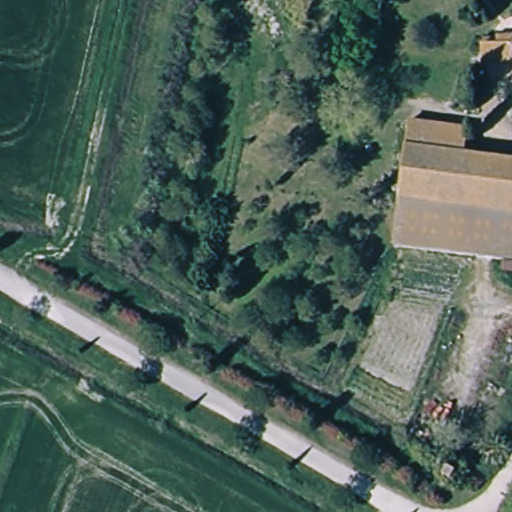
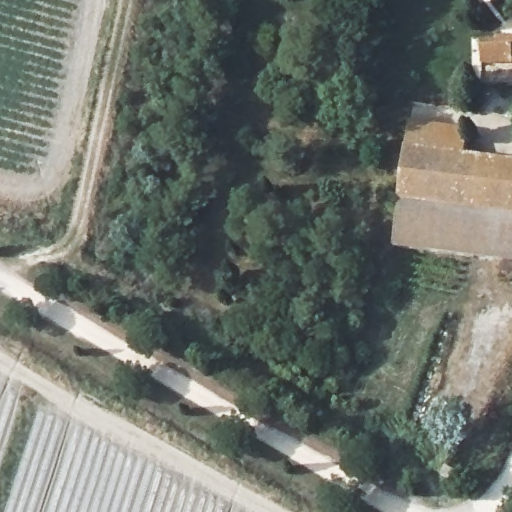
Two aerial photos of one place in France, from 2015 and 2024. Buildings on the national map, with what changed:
unchanged [(482,44),(501,42),(501,36),(512,35),(512,72),(485,70),(482,44)]
unchanged [(410,157),(413,127),(464,132),(463,161),(410,157)]
unchanged [(512,165),(512,212),(405,202),(410,157),(463,161),(512,165)]
unchanged [(405,202),(512,212),(512,260),(401,251),(405,202)]

